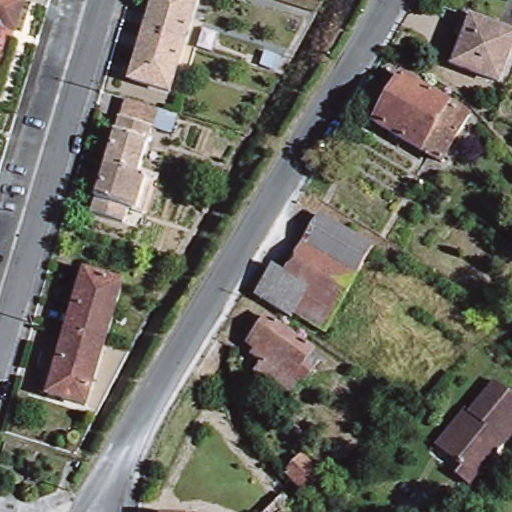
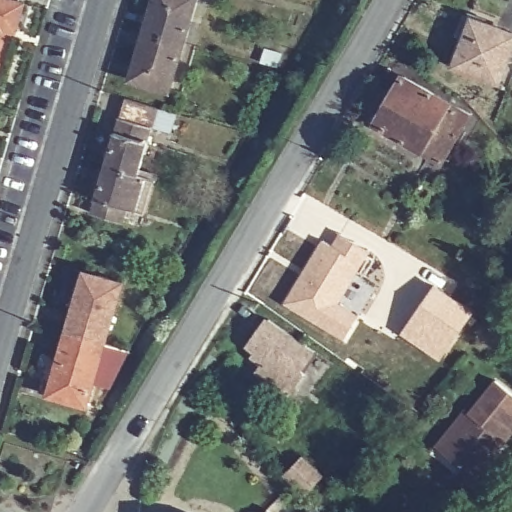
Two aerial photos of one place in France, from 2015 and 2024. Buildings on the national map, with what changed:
unchanged [(12,25),(0,22),(0,0),(20,0),(12,25)]
unchanged [(158,0),(193,0),(183,35),(151,26),(158,0)]
unchanged [(512,27),(496,72),(454,56),(471,10),(512,26),(512,27)]
unchanged [(183,35),(169,83),(137,74),(151,26),(183,35)]
unchanged [(371,117),(397,70),(464,108),(437,155),(371,117)]
unchanged [(134,167),(102,158),(121,91),(154,101),(134,167)]
unchanged [(134,167),(152,173),(142,206),(125,201),(122,213),(88,203),(102,158),(134,167)]
unchanged [(432,192),(422,185),(428,175),(433,178),(438,181),(432,192)]
unchanged [(287,272),(320,218),(372,248),(342,299),(322,331),(292,313),(289,317),(256,296),(273,265),(287,272)]
unchanged [(63,325),(81,263),(121,275),(102,336),(63,325)]
new [(434,283),(475,311),(440,361),(399,332),(434,283)]
unchanged [(317,349),(315,352),(322,358),(308,379),(302,375),(291,392),(252,364),(249,358),(249,350),(270,317),(317,349)]
unchanged [(63,325),(102,336),(85,398),(45,385),(63,325)]
unchanged [(460,460),(442,446),(470,409),(467,406),(491,374),(512,391),(512,421),(467,479),(453,469),(460,460)]
unchanged [(214,396),(220,391),(223,396),(217,401),(214,396)]
unchanged [(317,486),(296,468),(311,450),(332,469),(317,486)]
unchanged [(290,506),(294,512),(270,512),(284,497),(290,506)]
unchanged [(167,512),(159,512),(160,511),(167,512)]

